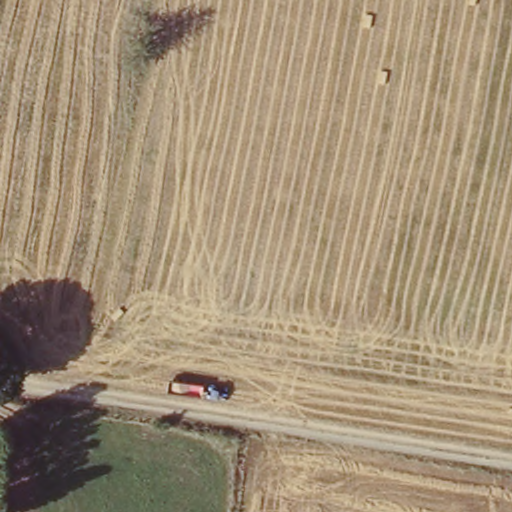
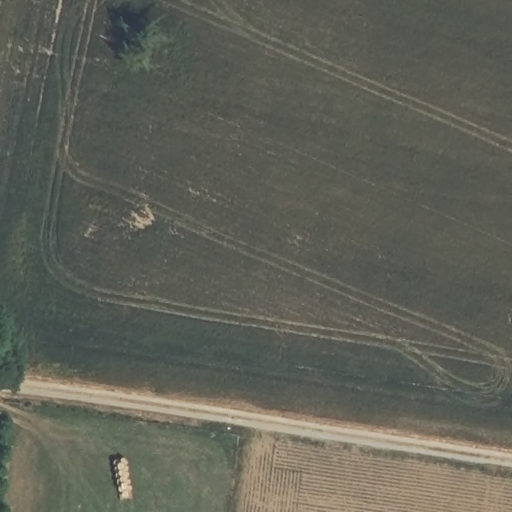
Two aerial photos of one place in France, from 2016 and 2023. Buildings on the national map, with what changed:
[]

